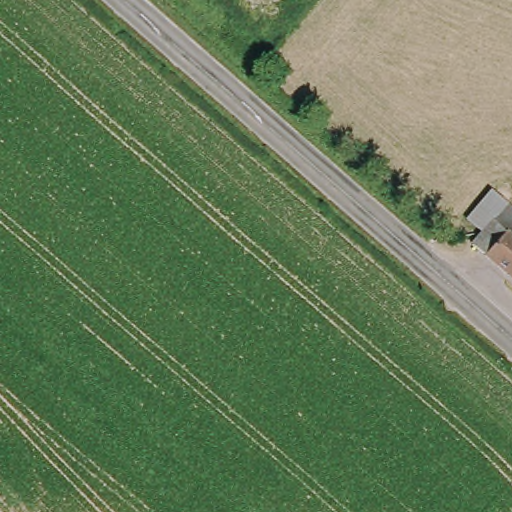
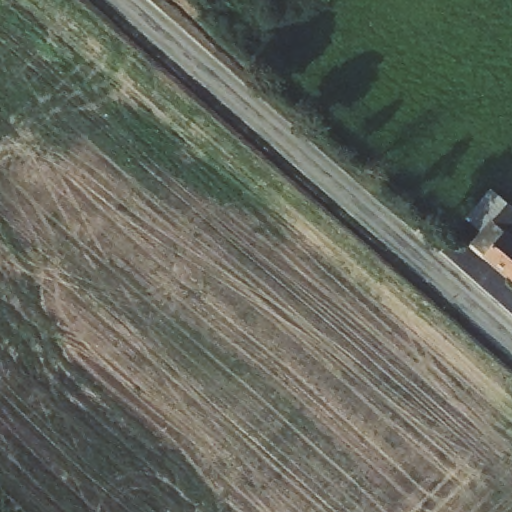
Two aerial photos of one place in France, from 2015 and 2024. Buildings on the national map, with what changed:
unchanged [(504,234),(512,240),(512,282),(470,251),(492,225),(504,234)]

